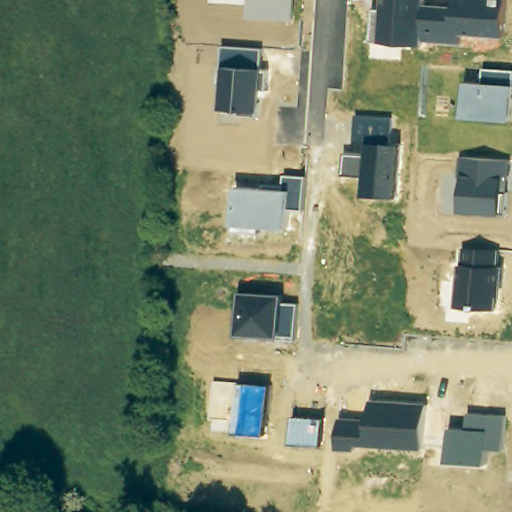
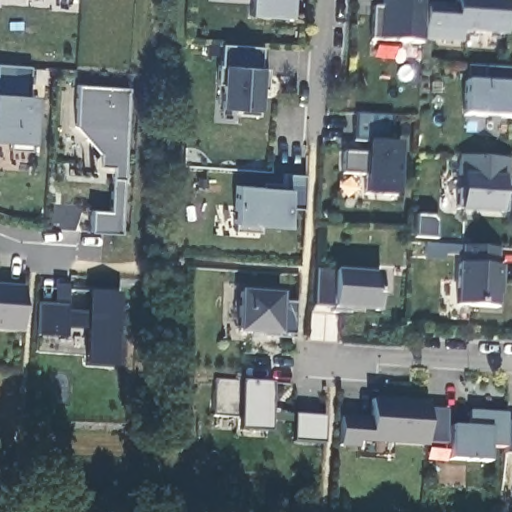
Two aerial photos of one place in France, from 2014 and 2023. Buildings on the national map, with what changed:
unchanged [(249,15),(250,0),(295,0),(294,18),(249,15)]
unchanged [(381,9),(381,0),(425,0),(425,5),(454,5),(455,0),(508,0),(506,37),(462,34),(463,44),(422,41),(422,44),(380,41),(371,40),(372,8),(381,9)]
unchanged [(223,66),(221,46),(262,49),(263,70),(268,69),(267,88),(261,90),(259,111),(257,116),(239,115),(240,109),(220,109),(223,66)]
new [(34,96),(31,143),(30,151),(9,150),(14,142),(0,141),(0,65),(29,67),(31,96),(34,96)]
unchanged [(464,81),(483,82),(483,68),(512,69),(512,117),(512,118),(461,115),(464,81)]
new [(99,154),(75,127),(78,85),(130,89),(120,234),(89,232),(90,210),(109,211),(111,172),(93,171),(94,159),(99,154)]
unchanged [(343,175),(345,154),(365,156),(367,142),(353,141),(355,116),(392,117),(393,145),(402,145),(399,197),(362,196),(363,176),(343,175)]
unchanged [(461,176),(457,174),(459,157),(509,161),(508,192),(506,192),(504,212),(499,212),(499,215),(459,212),(461,176)]
unchanged [(236,187),(285,190),(283,175),(306,177),(304,209),(290,207),(289,227),(261,225),(261,232),(233,231),(234,222),(236,187)]
unchanged [(458,264),(464,263),(463,248),(499,250),(499,267),(503,266),(501,297),(498,297),(497,307),(458,306),(458,264)]
unchanged [(378,312),(334,308),(313,307),(315,270),(335,271),(379,275),(378,312)]
new [(0,332),(0,286),(23,287),(21,332),(0,332)]
new [(35,337),(36,305),(53,306),(55,286),(66,286),(67,306),(66,312),(87,314),(89,293),(120,295),(114,369),(82,367),(85,330),(65,329),(64,338),(35,337)]
unchanged [(237,335),(239,292),(282,295),(281,303),(296,305),(295,336),(278,336),(237,335)]
unchanged [(213,381),(243,383),(272,387),(268,433),(238,431),(239,417),(212,417),(213,381)]
unchanged [(338,448),(340,417),(370,422),(372,399),(428,402),(426,447),(357,445),(357,450),(338,448)]
unchanged [(450,427),(468,427),(468,412),(506,414),(505,449),(488,448),(487,463),(448,461),(450,427)]
unchanged [(325,418),(324,445),(292,442),(294,417),(325,418)]

